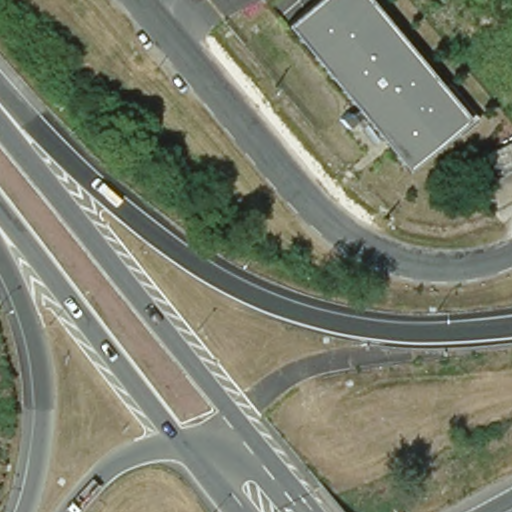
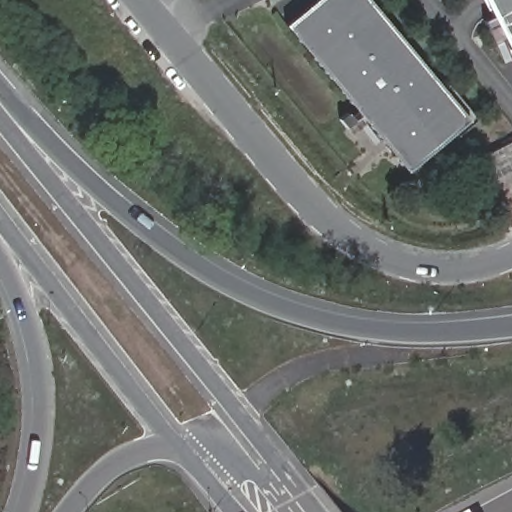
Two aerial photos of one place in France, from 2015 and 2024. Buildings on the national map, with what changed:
unchanged [(451,86),(480,119),(449,146),(443,139),(408,171),(367,122),(353,133),(341,117),(354,107),(286,27),(319,0),(370,0),(444,91),(451,86)]
new [(485,0),(512,0),(512,53),(485,0)]
unchanged [(512,144),(512,168),(480,185),(469,166),(512,144)]

